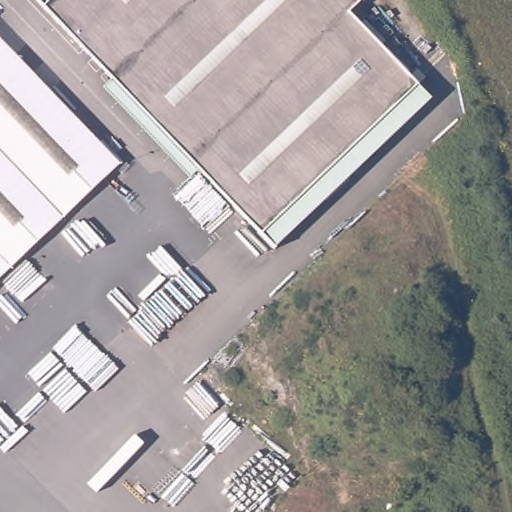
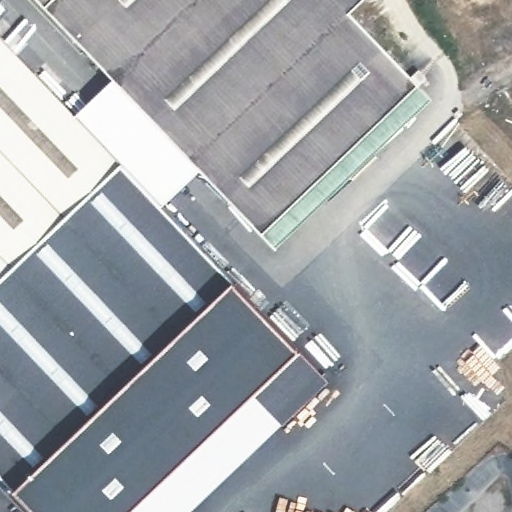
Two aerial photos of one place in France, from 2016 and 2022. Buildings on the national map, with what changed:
unchanged [(356,0),(347,8),(406,68),(417,80),(262,231),(250,219),(41,6),(36,0),(356,0)]
unchanged [(0,40),(120,164),(41,239),(0,195),(0,40)]
new [(0,278),(41,239),(120,164),(73,116),(113,79),(201,169),(160,206),(232,284),(298,352),(327,381),(190,512),(34,512),(14,491),(0,477),(0,278)]
new [(260,233),(262,231),(415,82),(431,98),(274,248),(260,233)]
unchanged [(0,278),(0,195),(41,239),(0,278)]

